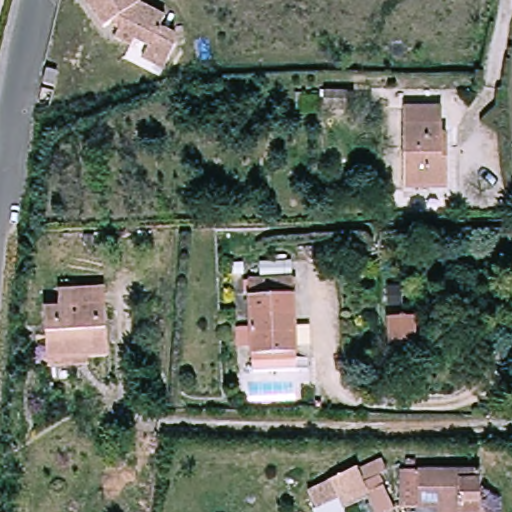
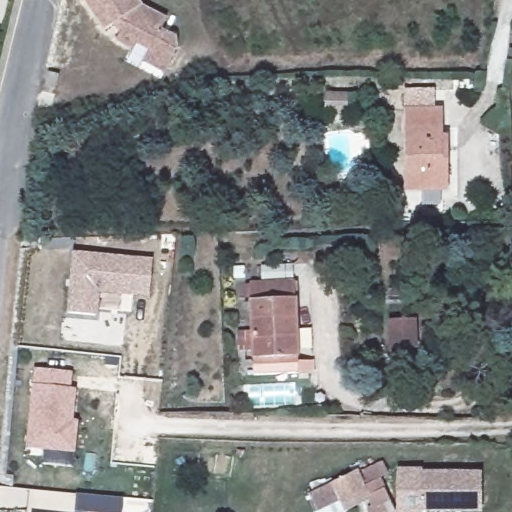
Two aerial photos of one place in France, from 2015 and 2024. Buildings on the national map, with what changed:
unchanged [(145,60),(148,53),(149,51),(135,43),(132,48),(116,40),(119,34),(113,24),(104,29),(85,0),(136,0),(139,5),(165,19),(160,29),(176,37),(177,49),(169,64),(165,69),(145,60)]
unchanged [(53,88),(45,86),(48,72),(57,74),(53,88)]
unchanged [(450,113),(450,149),(445,152),(446,192),(411,193),(412,111),(450,113)]
new [(153,260),(149,299),(100,295),(98,318),(67,315),(72,253),(153,260)]
unchanged [(298,277),(300,353),(298,353),(299,370),(257,370),(254,279),(298,277)]
demolished [(50,358),(50,309),(67,309),(67,295),(113,295),(114,358),(90,358),(50,358)]
new [(74,421),(79,422),(75,454),(27,450),(32,386),(35,371),(73,374),(72,389),(77,391),(74,421)]
unchanged [(379,479),(391,512),(369,512),(363,501),(340,512),(309,512),(304,497),(386,464),(389,474),(379,479)]
unchanged [(478,472),(477,503),(459,502),(458,510),(401,509),(401,471),(478,472)]
new [(123,500),(122,512),(75,512),(77,496),(123,500)]

